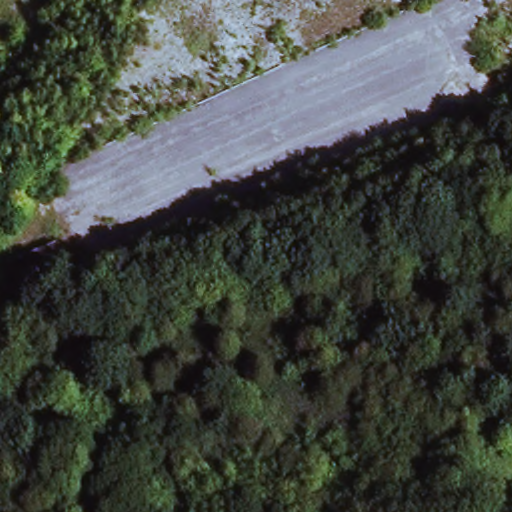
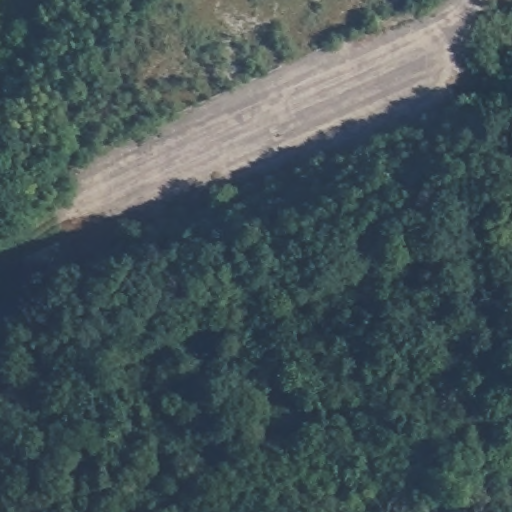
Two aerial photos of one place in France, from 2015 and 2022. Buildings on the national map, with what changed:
unchanged [(20,251),(60,234),(71,256),(30,275),(20,251)]

